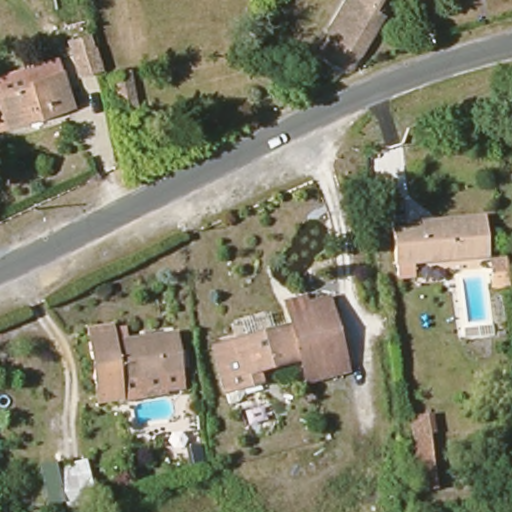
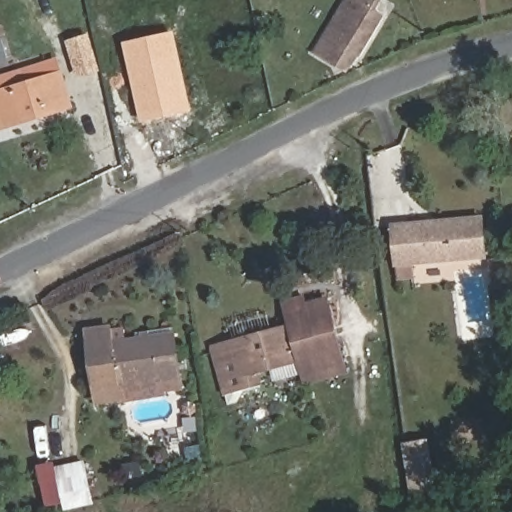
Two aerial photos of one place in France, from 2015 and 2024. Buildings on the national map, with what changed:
unchanged [(343,0),(378,0),(373,7),(381,12),(349,66),(316,45),(343,0)]
new [(175,31),(192,111),(140,122),(122,42),(175,31)]
unchanged [(92,46),(99,70),(73,77),(67,54),(92,46)]
unchanged [(7,130),(1,132),(0,132),(0,83),(53,66),(67,110),(7,130)]
unchanged [(125,74),(134,113),(116,117),(109,77),(125,74)]
unchanged [(397,271),(395,258),(393,221),(481,212),(484,249),(412,257),(413,268),(397,271)]
unchanged [(309,384),(306,375),(301,357),(261,370),(264,381),(223,393),(210,350),(292,326),(286,306),(284,299),(301,294),(303,301),(325,295),(346,363),(348,372),(309,384)]
unchanged [(120,400),(98,402),(88,330),(110,327),(112,338),(174,330),(175,337),(181,387),(148,392),(119,396),(120,400)]
unchanged [(425,412),(432,485),(415,486),(408,415),(425,412)]
unchanged [(51,467),(80,461),(89,502),(60,508),(51,467)]

